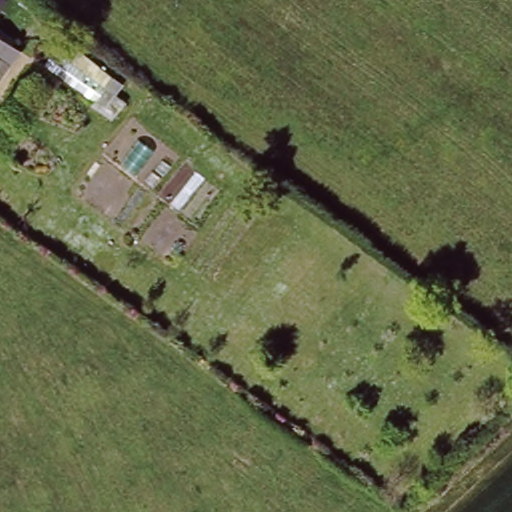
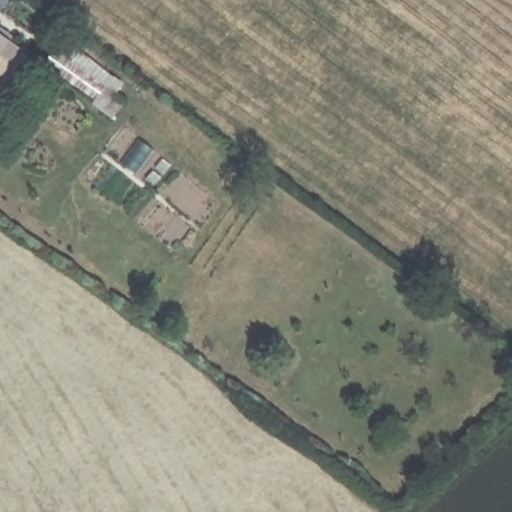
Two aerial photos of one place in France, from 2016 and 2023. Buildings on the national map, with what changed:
unchanged [(0,70),(0,58),(5,61),(0,70)]
unchanged [(26,181),(0,162),(0,142),(51,72),(87,99),(26,181)]

